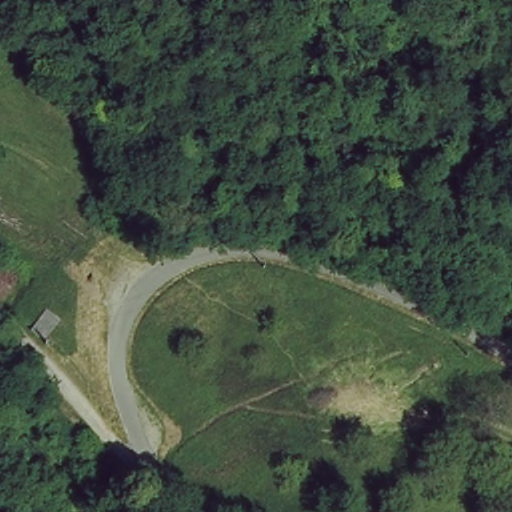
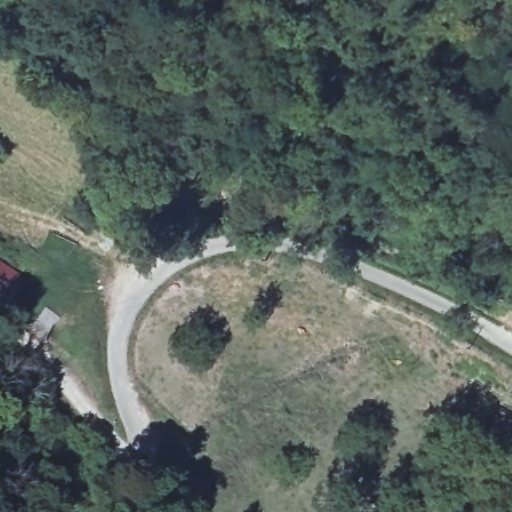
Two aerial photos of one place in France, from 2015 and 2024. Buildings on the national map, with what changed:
unchanged [(14,268),(0,288),(0,259),(14,268)]

